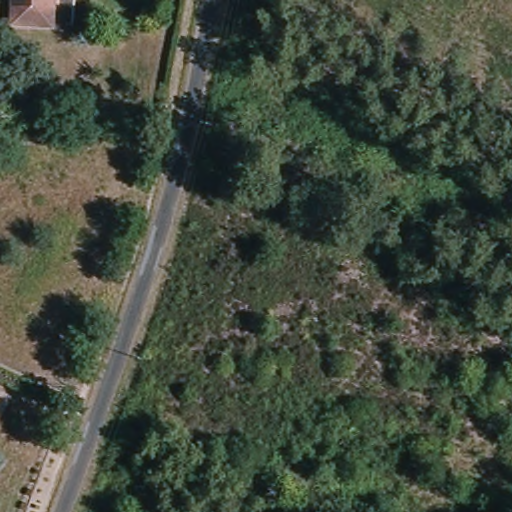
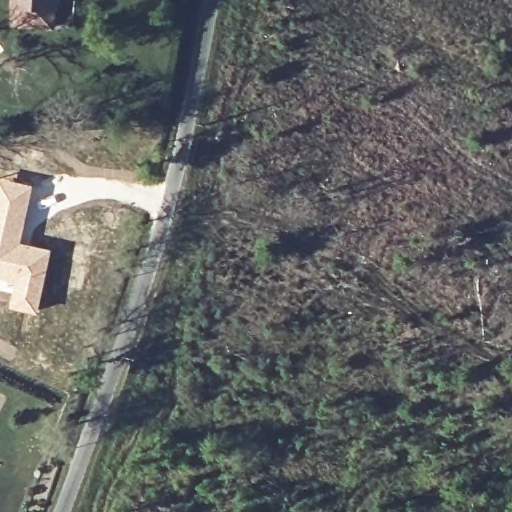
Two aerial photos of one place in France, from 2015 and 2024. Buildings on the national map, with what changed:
unchanged [(11,0),(52,0),(50,20),(10,19),(11,0)]
new [(21,240),(52,248),(38,312),(8,305),(11,293),(0,291),(0,177),(33,184),(21,240)]

